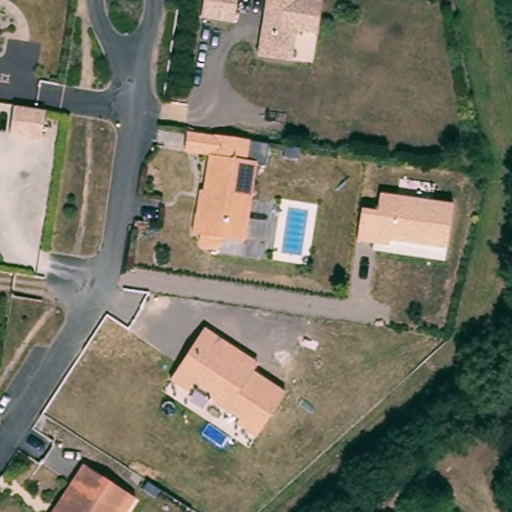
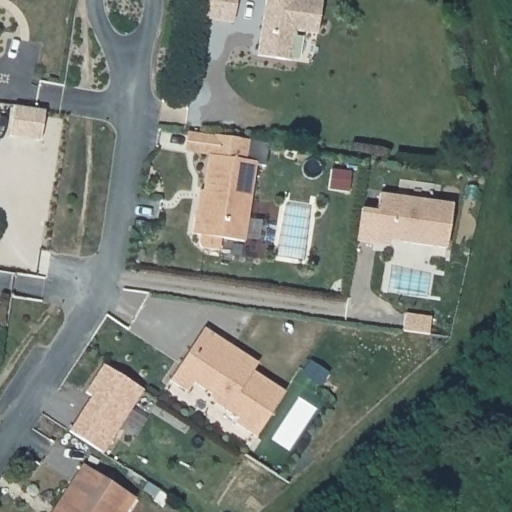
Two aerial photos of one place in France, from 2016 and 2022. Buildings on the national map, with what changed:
unchanged [(201,17),(204,0),(237,0),(233,22),(201,17)]
unchanged [(296,30),(291,60),(258,55),(266,0),(322,0),(317,33),(296,30)]
unchanged [(46,135),(15,130),(19,100),(50,104),(46,135)]
unchanged [(209,190),(214,154),(190,151),(193,131),(217,134),(254,140),(251,160),(261,161),(250,241),(226,237),(225,250),(208,247),(207,246),(205,245),(205,243),(204,242),(204,240),(205,234),(197,233),(200,213),(201,213),(205,189),(209,190)]
unchanged [(361,208),(378,210),(381,193),(453,205),(447,248),(392,239),(390,247),(357,240),(361,208)]
unchanged [(188,386),(170,374),(204,322),(246,349),(258,357),(253,365),(286,386),(256,431),(236,417),(239,413),(212,395),(211,387),(194,377),(188,386)]
new [(92,395),(86,392),(104,364),(143,390),(103,452),(69,430),(92,395)]
unchanged [(83,464),(135,497),(126,512),(118,512),(117,512),(59,512),(76,486),(71,482),(83,464)]

